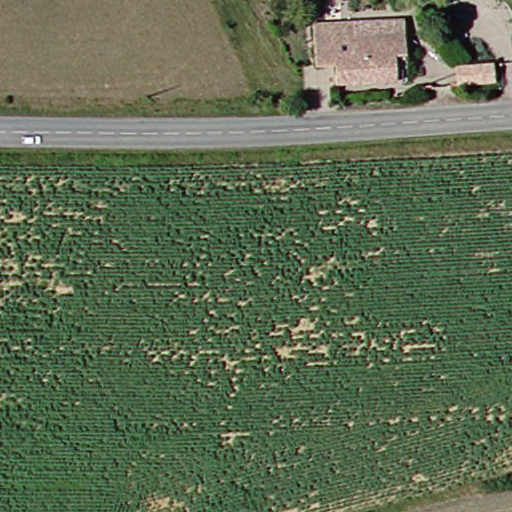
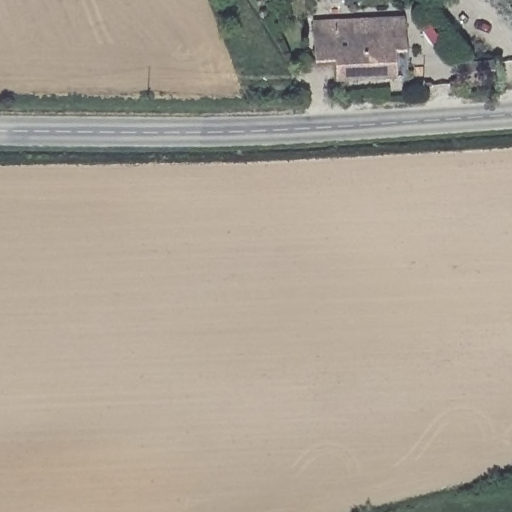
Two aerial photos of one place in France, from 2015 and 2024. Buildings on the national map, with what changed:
unchanged [(402,36),(400,76),(336,73),(337,57),(317,56),(318,19),(353,21),(352,34),(402,36)]
unchanged [(448,73),(434,73),(435,64),(467,66),(468,90),(447,90),(448,73)]

